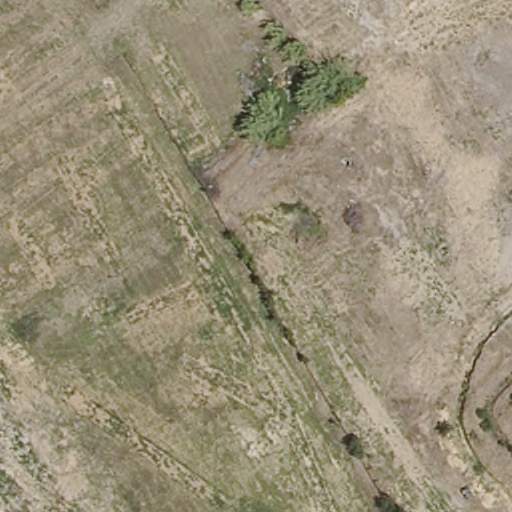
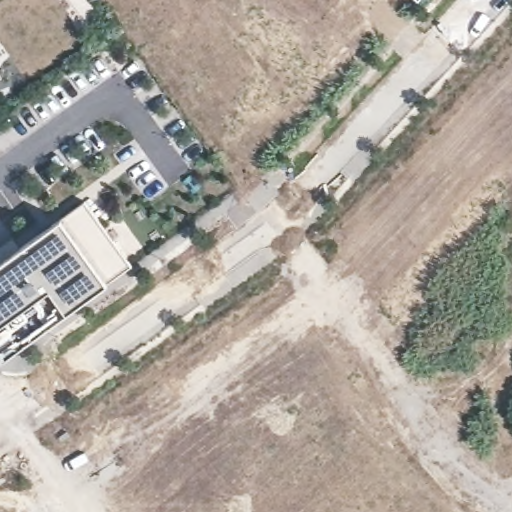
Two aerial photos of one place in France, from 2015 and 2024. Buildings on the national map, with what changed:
demolished [(461,0),(508,0),(463,44),(438,21),(461,0)]
demolished [(512,0),(512,5),(508,0),(512,0)]
new [(132,266),(2,360),(0,357),(0,263),(85,202),(132,266)]
demolished [(11,466),(26,490),(34,500),(41,512),(0,512),(0,448),(11,466)]

